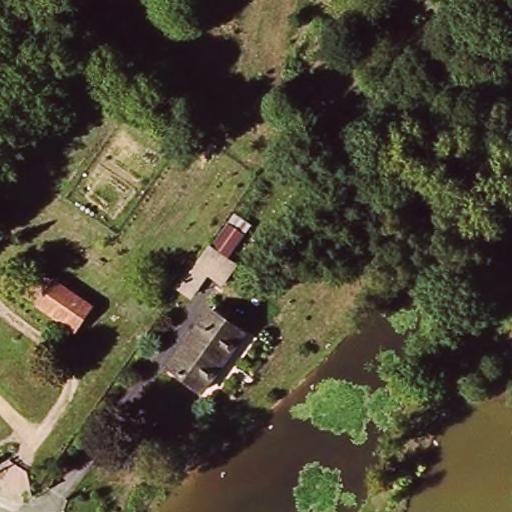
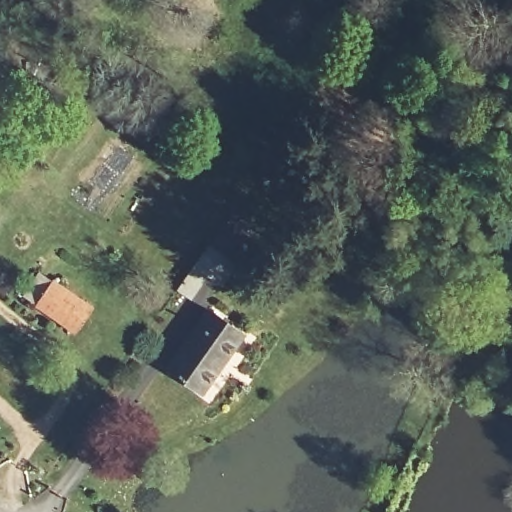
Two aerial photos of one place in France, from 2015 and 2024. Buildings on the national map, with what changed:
unchanged [(208,243),(212,245),(235,214),(251,228),(220,272),(214,269),(193,297),(176,289),(208,243)]
unchanged [(77,333),(66,324),(19,292),(37,265),(84,297),(96,305),(77,333)]
unchanged [(246,331),(204,389),(170,364),(212,307),(246,331)]

